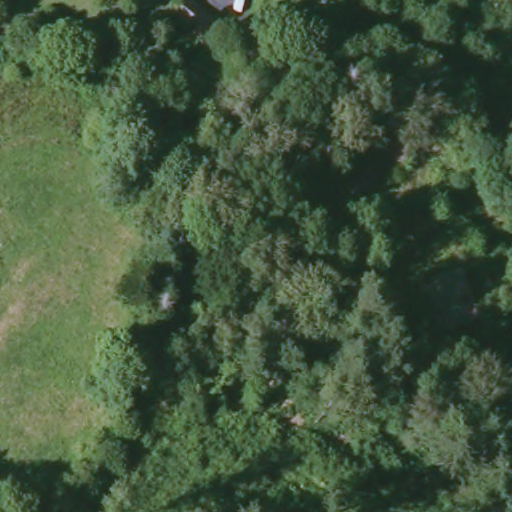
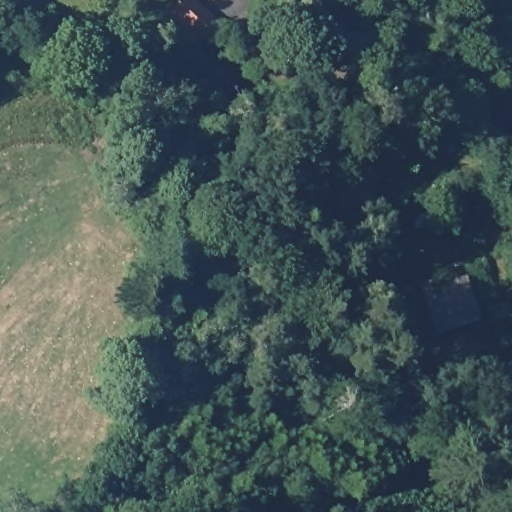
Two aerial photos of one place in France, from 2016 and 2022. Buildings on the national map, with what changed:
unchanged [(212,16),(194,36),(168,10),(178,0),(194,0),(212,16)]
unchanged [(417,133),(404,165),(384,156),(379,168),(364,161),(383,119),(417,133)]
unchanged [(376,182),(347,212),(332,197),(361,166),(376,182)]
unchanged [(444,335),(431,301),(426,286),(454,275),(467,271),(484,320),(444,335)]

